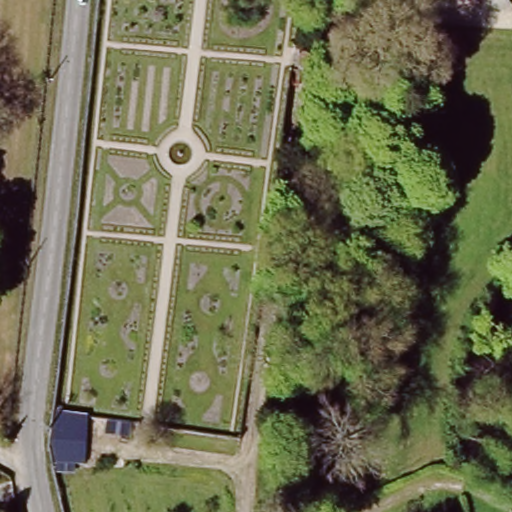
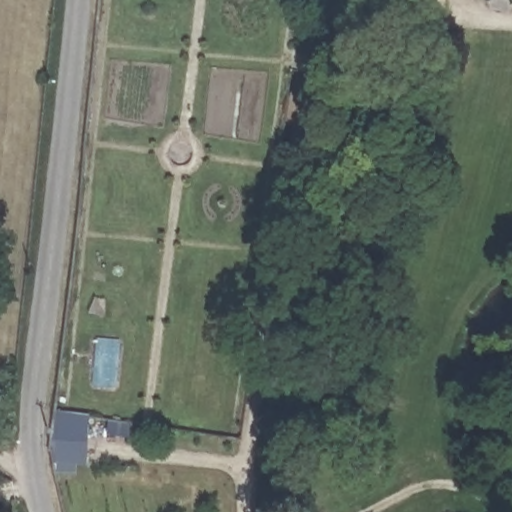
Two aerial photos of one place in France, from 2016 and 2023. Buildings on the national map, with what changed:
unchanged [(320,64),(319,83),(300,82),(303,63),(320,64)]
unchanged [(89,413),(86,465),(74,465),(74,472),(54,472),(48,453),(53,409),(89,413)]

